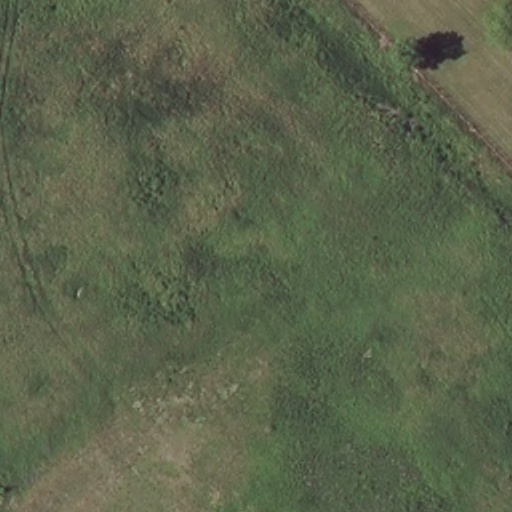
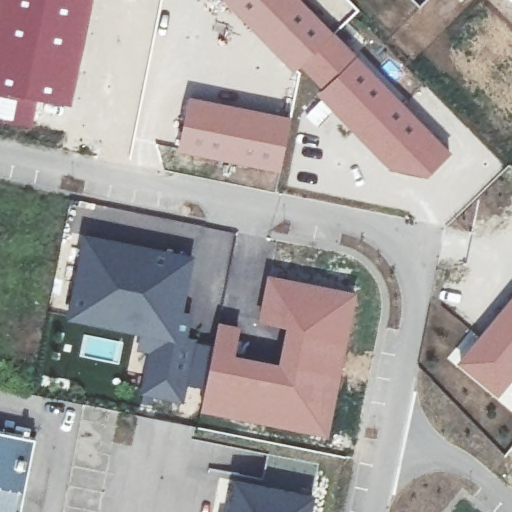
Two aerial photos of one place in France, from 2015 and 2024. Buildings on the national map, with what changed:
new [(94,10),(81,67),(72,106),(37,99),(33,125),(0,119),(0,0),(95,0),(94,10)]
new [(94,10),(95,0),(161,0),(158,16),(136,11),(128,32),(146,41),(144,76),(133,74),(111,61),(105,69),(81,67),(94,10)]
new [(335,31),(300,67),(294,73),(223,0),(305,0),(335,31)]
new [(359,10),(335,31),(305,0),(350,0),(359,10)]
new [(335,31),(357,53),(320,88),(300,67),(335,31)]
new [(320,98),(315,93),(320,88),(357,53),(452,152),(427,177),(387,169),(332,111),(316,127),(305,115),(320,98)]
new [(188,95),(292,116),(281,171),(178,151),(188,95)]
new [(143,391),(147,375),(152,376),(160,350),(141,345),(143,331),(69,317),(85,234),(192,256),(180,311),(190,314),(185,339),(194,342),(181,400),(143,391)]
new [(512,380),(499,397),(457,363),(512,296),(512,380)]
new [(35,438),(19,512),(0,512),(0,431),(35,438)]
new [(262,478),(266,455),(316,464),(308,512),(231,512),(237,482),(238,475),(262,478)]

